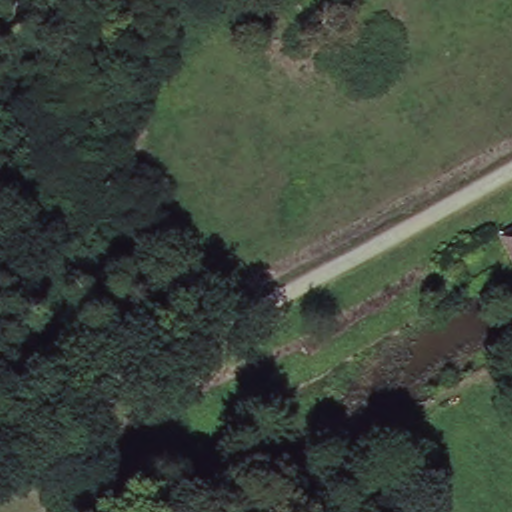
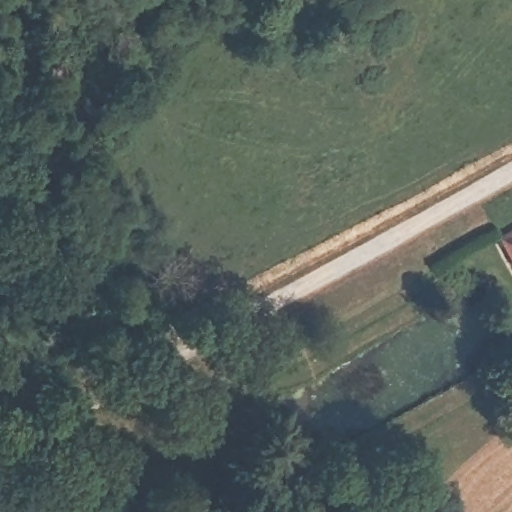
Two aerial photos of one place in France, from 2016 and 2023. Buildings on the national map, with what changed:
unchanged [(512,254),(501,230),(512,225),(512,254)]

